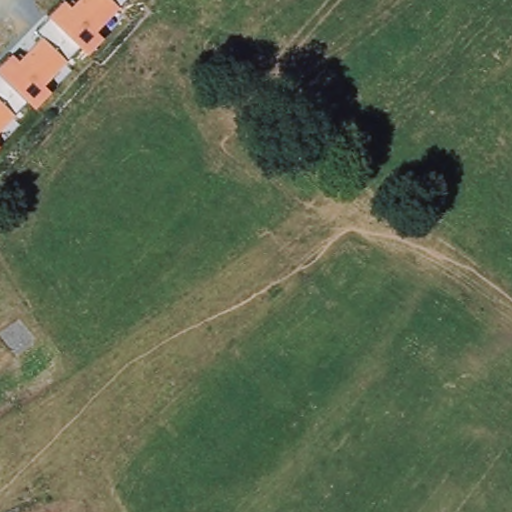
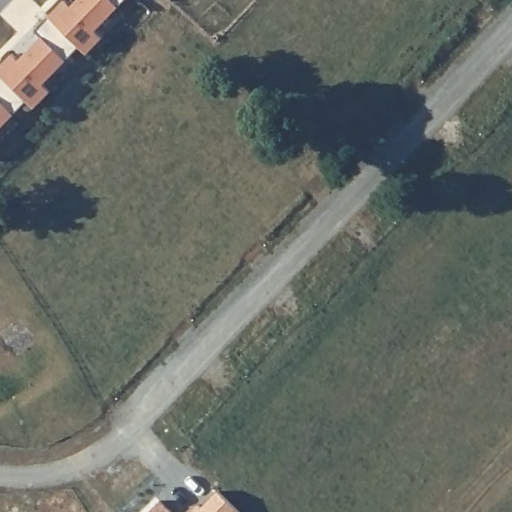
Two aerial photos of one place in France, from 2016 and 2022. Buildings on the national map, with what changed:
unchanged [(15,54),(23,61),(43,37),(37,31),(65,0),(71,6),(77,0),(126,0),(97,31),(104,39),(86,57),(79,50),(45,86),(52,93),(34,111),(28,104),(0,132),(0,68),(15,54)]
new [(201,507),(217,491),(238,512),(186,512),(195,503),(201,507)]
new [(149,512),(161,500),(173,512),(149,512)]

